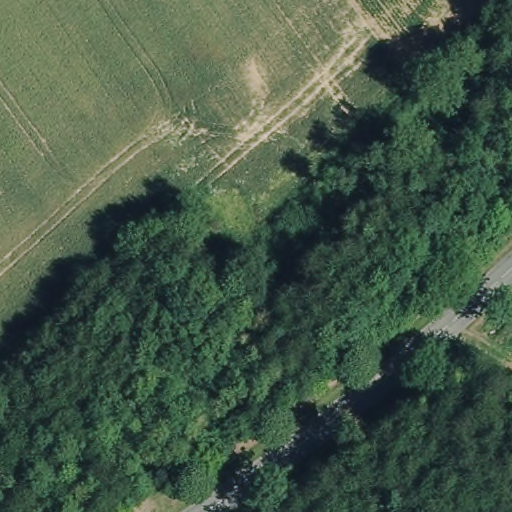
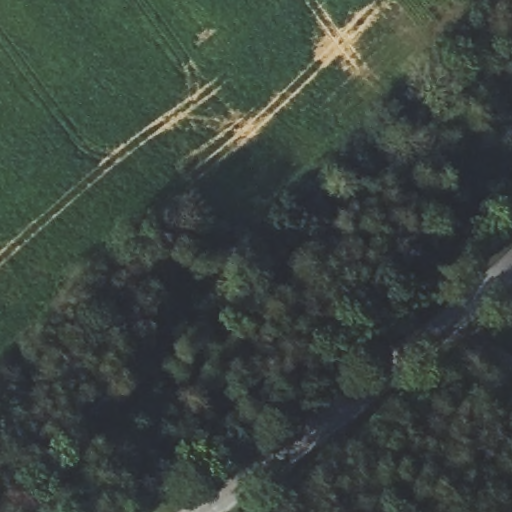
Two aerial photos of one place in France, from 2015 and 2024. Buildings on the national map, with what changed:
[]

